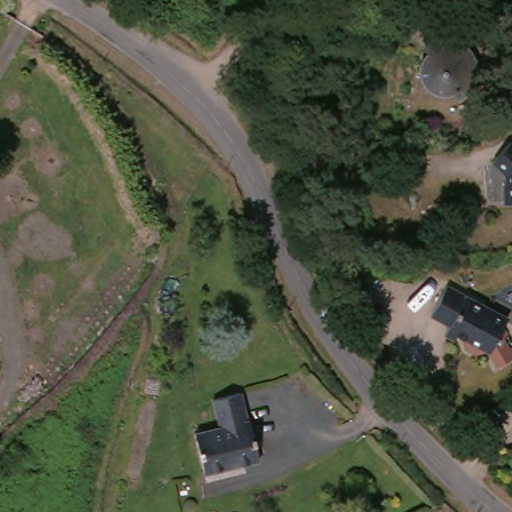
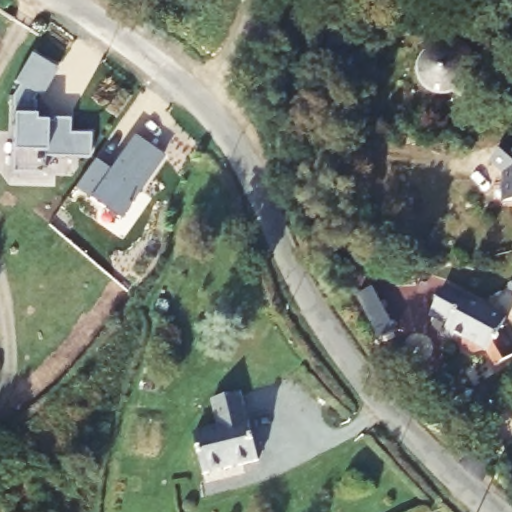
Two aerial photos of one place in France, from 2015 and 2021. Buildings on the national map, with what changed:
unchanged [(462,115),(453,107),(429,104),(418,94),(412,77),(414,62),(423,52),(423,45),(435,41),(445,40),(459,41),(473,52),(482,66),(484,84),(479,101),(462,115)]
new [(20,85),(15,81),(34,55),(59,73),(40,99),(32,93),(27,99),(31,103),(33,99),(33,119),(52,119),(52,116),(70,115),(70,130),(91,130),(91,154),(47,155),(47,173),(14,173),(13,95),(20,85)]
new [(95,158),(112,170),(118,163),(116,161),(135,134),(165,156),(119,218),(90,196),(92,194),(77,183),(95,158)]
unchanged [(512,209),(500,209),(499,193),(502,193),(501,178),(487,168),(502,146),(512,153),(512,209)]
new [(379,340),(356,296),(372,288),(396,330),(379,340)]
unchanged [(478,360),(468,366),(460,361),(458,350),(445,341),(448,333),(428,321),(445,293),(501,328),(496,337),(512,363),(512,366),(490,379),(478,360)]
unchanged [(248,429),(249,428),(260,466),(203,482),(193,442),(220,435),(213,406),(239,399),(248,429)]

